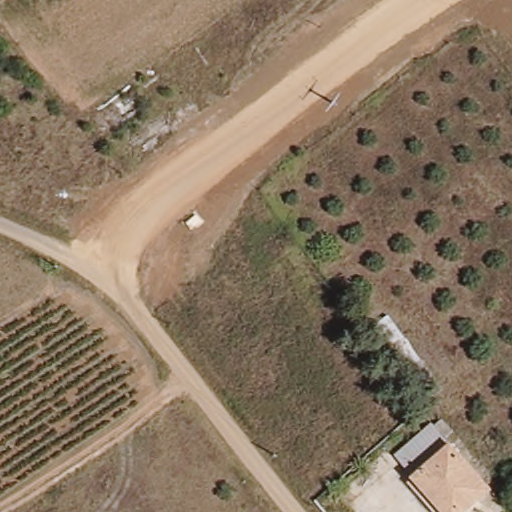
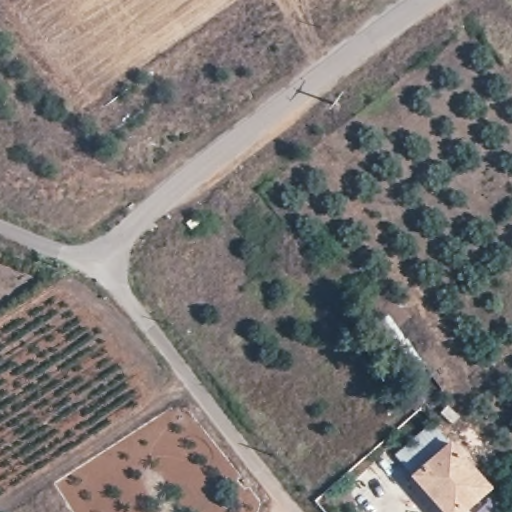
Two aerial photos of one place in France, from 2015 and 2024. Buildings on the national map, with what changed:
unchanged [(447,378),(425,391),(369,326),(389,308),(447,378)]
unchanged [(421,477),(406,460),(442,428),(457,445),(421,477)]
unchanged [(457,445),(500,493),(479,512),(451,512),(421,477),(457,445)]

